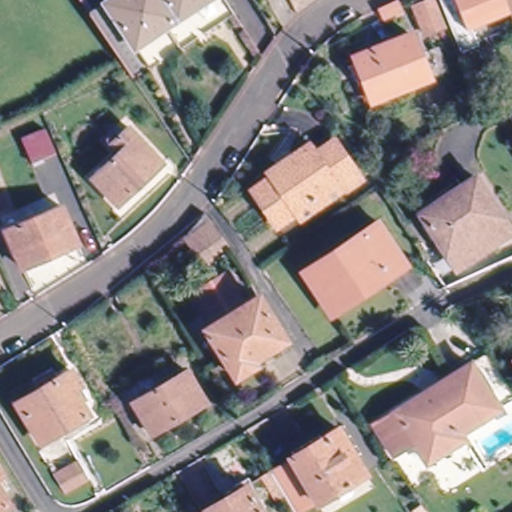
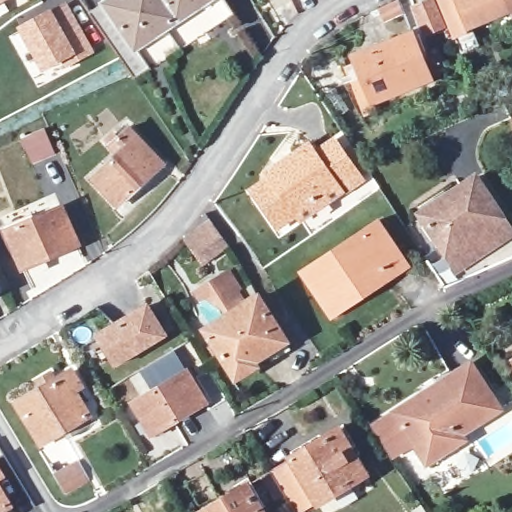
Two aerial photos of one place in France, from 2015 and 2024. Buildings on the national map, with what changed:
new [(0,3),(0,0),(5,0),(0,3)]
unchanged [(107,0),(233,0),(237,7),(140,71),(136,65),(130,55),(96,6),(107,0)]
unchanged [(408,0),(422,0),(429,16),(413,24),(404,1),(408,0)]
unchanged [(446,37),(430,0),(495,0),(501,14),(446,37)]
unchanged [(512,10),(501,14),(495,0),(512,0),(512,10)]
new [(93,51),(66,69),(62,60),(41,72),(17,26),(66,2),(93,51)]
unchanged [(412,28),(429,71),(358,99),(343,62),(357,57),(355,50),(412,28)]
unchanged [(123,148),(115,139),(127,128),(160,164),(115,205),(90,179),(123,148)]
unchanged [(40,133),(50,155),(30,165),(20,143),(40,133)]
unchanged [(512,134),(512,144),(508,136),(512,134)]
unchanged [(300,217),(296,211),(278,224),(257,192),(274,181),(269,173),(283,164),(293,157),(314,142),(319,150),(336,139),(356,170),(336,183),(341,190),(300,217)]
unchanged [(470,178),(509,236),(455,272),(416,215),(470,178)]
unchanged [(198,259),(182,233),(192,220),(203,204),(226,240),(198,259)]
unchanged [(60,206),(77,246),(22,271),(5,231),(60,206)]
unchanged [(371,225),(396,265),(323,311),(298,272),(371,225)]
unchanged [(252,365),(231,378),(203,330),(207,328),(199,312),(202,310),(194,295),(223,276),(240,306),(255,297),(281,338),(285,345),(252,365)]
new [(94,334),(149,302),(168,335),(113,367),(94,334)]
unchanged [(512,364),(510,360),(512,359),(512,364)]
unchanged [(461,360),(489,402),(412,453),(403,440),(386,451),(367,422),(461,360)]
unchanged [(181,368),(201,401),(150,435),(129,400),(181,368)]
unchanged [(27,395),(22,385),(34,378),(40,387),(62,374),(71,390),(62,395),(77,420),(34,447),(9,406),(27,395)]
unchanged [(344,420),(359,446),(370,465),(321,492),(320,490),(300,501),(276,463),(296,451),(295,449),(344,420)]
unchanged [(76,467),(87,486),(63,501),(52,482),(76,467)]
unchanged [(2,476),(0,478),(0,472),(2,476)]
unchanged [(242,491),(255,512),(206,512),(232,497),(242,491)]
unchanged [(8,508),(2,512),(0,512),(0,494),(8,508)]

